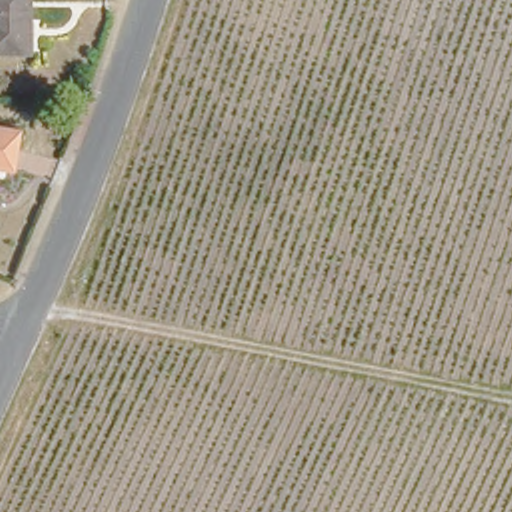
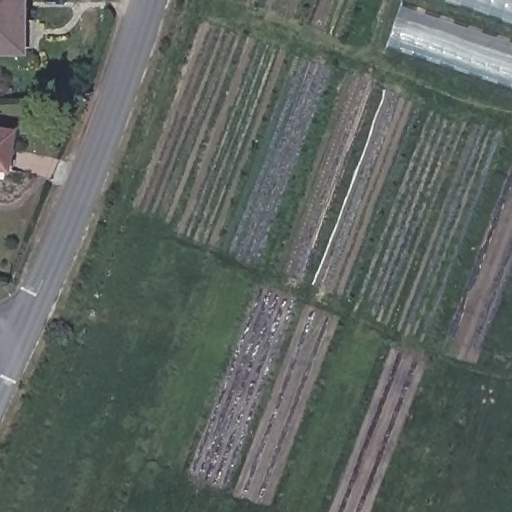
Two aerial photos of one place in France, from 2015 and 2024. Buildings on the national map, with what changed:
unchanged [(0,50),(0,0),(22,0),(22,49),(0,50)]
new [(512,0),(512,18),(456,0),(512,0)]
new [(403,5),(512,41),(512,82),(391,41),(403,5)]
unchanged [(5,167),(0,166),(0,125),(11,127),(5,167)]

